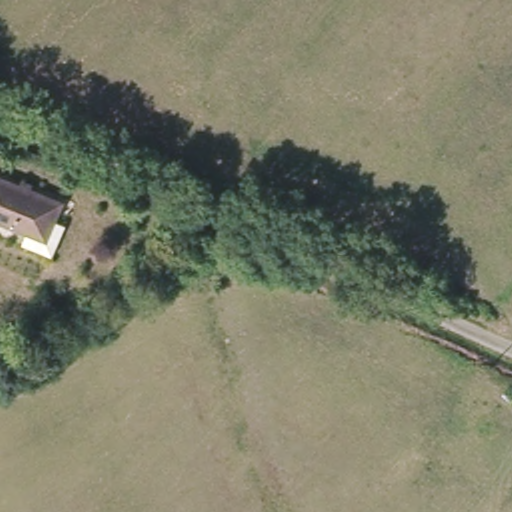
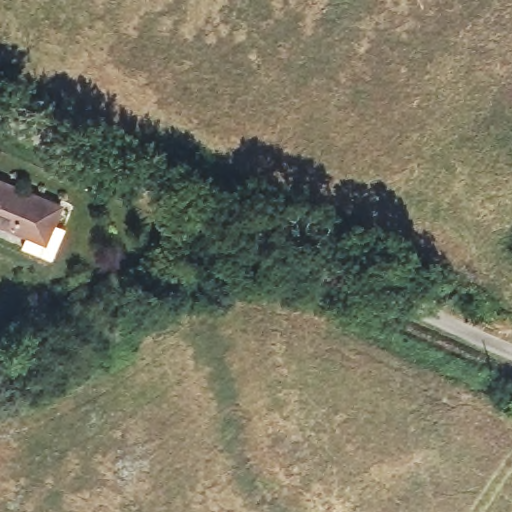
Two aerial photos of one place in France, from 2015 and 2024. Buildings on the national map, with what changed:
unchanged [(61,201),(55,220),(66,225),(55,255),(23,244),(29,230),(0,219),(0,179),(61,201)]

